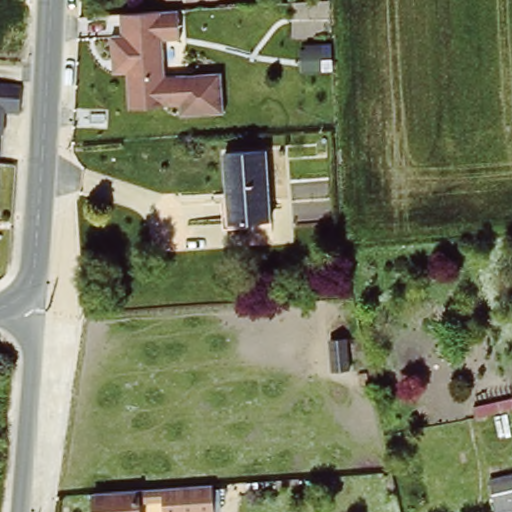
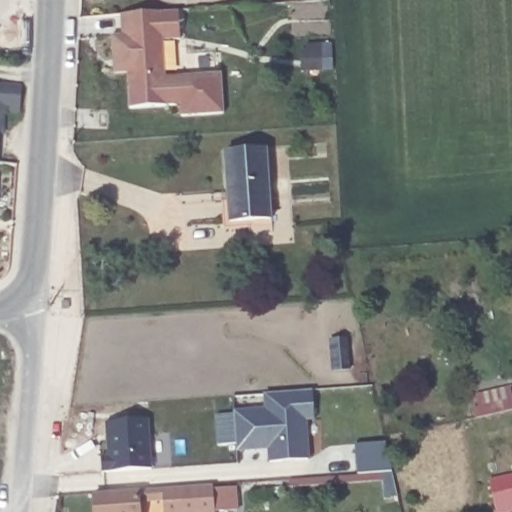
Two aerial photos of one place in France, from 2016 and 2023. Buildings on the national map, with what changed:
unchanged [(110,59),(108,36),(120,35),(118,15),(176,11),(178,39),(160,40),(163,76),(218,72),(221,111),(179,114),(178,103),(127,107),(125,72),(111,72),(110,59)]
unchanged [(20,111),(0,111),(0,83),(20,84),(20,111)]
unchanged [(265,152),(270,222),(228,225),(224,155),(265,152)]
new [(314,421),(306,421),(309,460),(269,461),(268,450),(237,451),(235,409),(264,407),(263,393),(312,390),(314,421)]
new [(99,455),(108,455),(105,422),(148,419),(151,468),(103,472),(99,455)]
unchanged [(512,475),(512,509),(496,512),(488,480),(512,475)]
unchanged [(218,488),(218,512),(170,512),(169,505),(145,507),(145,512),(100,512),(100,497),(218,488)]

